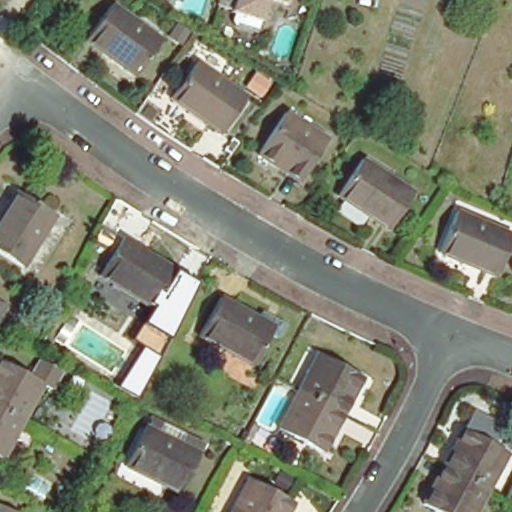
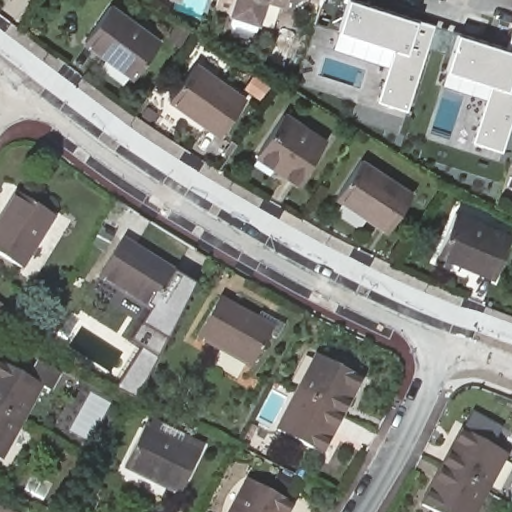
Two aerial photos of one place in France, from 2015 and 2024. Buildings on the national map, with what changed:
unchanged [(285,10),(265,2),(257,26),(247,22),(228,16),(229,14),(214,9),(217,0),(288,0),(286,7),(285,10)]
new [(378,101),(389,67),(334,49),(349,0),(354,0),(434,26),(407,111),(378,101)]
unchanged [(158,44),(132,80),(83,42),(110,7),(158,44)]
new [(512,78),(508,91),(512,92),(512,120),(502,151),(473,142),(486,99),(442,85),(459,34),(507,50),(512,34),(512,78)]
unchanged [(245,102),(219,138),(168,101),(194,66),(245,102)]
unchanged [(324,144),(296,186),(255,157),(283,116),(324,144)]
unchanged [(412,198),(387,235),(334,199),(360,163),(412,198)]
unchanged [(59,209),(25,262),(0,246),(0,217),(21,185),(59,209)]
unchanged [(512,250),(499,281),(442,256),(460,215),(512,237),(512,250)]
unchanged [(149,312),(96,279),(122,240),(174,273),(149,312)]
unchanged [(197,287),(136,402),(116,392),(141,348),(132,343),(149,312),(174,273),(197,287)]
unchanged [(196,340),(217,300),(257,322),(262,313),(282,325),(275,337),(268,333),(249,368),(196,340)]
unchanged [(4,309),(0,317),(0,307),(4,309)]
unchanged [(316,356),(361,381),(340,418),(295,395),(316,356)]
unchanged [(42,382),(22,420),(0,408),(0,360),(42,382)]
unchanged [(340,418),(319,456),(274,432),(295,395),(340,418)]
unchanged [(22,420),(1,458),(0,458),(0,408),(22,420)]
unchanged [(204,453),(183,492),(127,463),(148,423),(204,453)]
unchanged [(460,434),(505,456),(502,462),(510,466),(496,492),(490,488),(486,495),(441,472),(460,434)]
unchanged [(486,495),(477,512),(427,512),(422,510),(441,472),(486,495)]
unchanged [(286,512),(231,512),(246,482),(290,505),(286,512)]
unchanged [(5,512),(0,512),(0,509),(5,512)]

